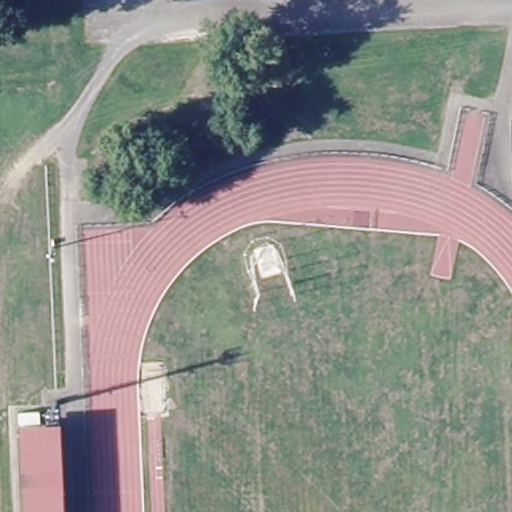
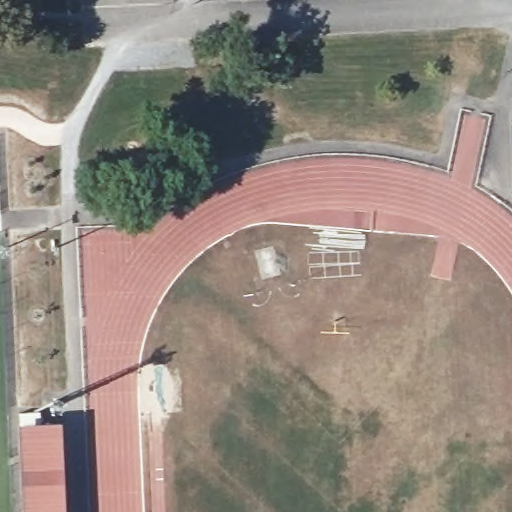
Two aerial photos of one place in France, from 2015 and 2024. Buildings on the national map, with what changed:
unchanged [(20,428),(60,427),(64,512),(24,512),(20,428)]

